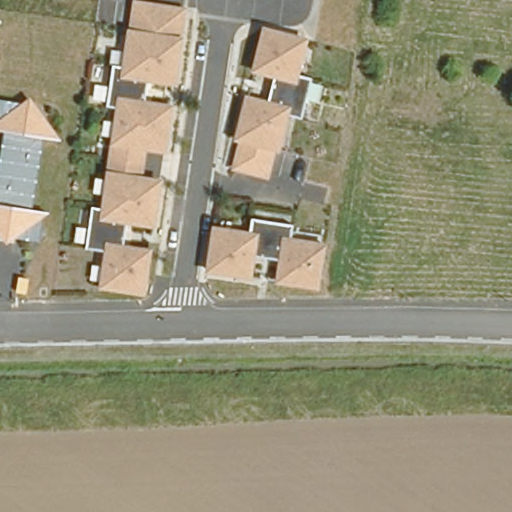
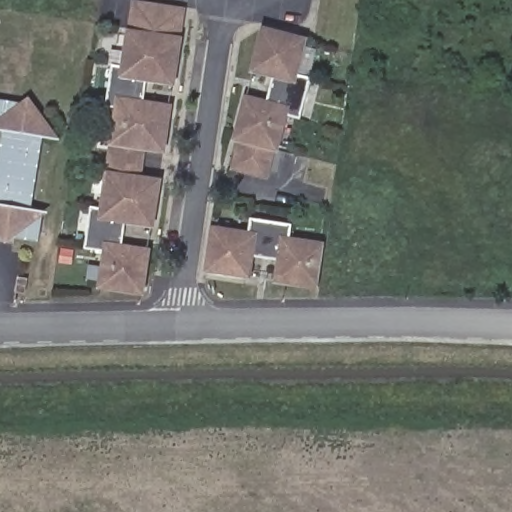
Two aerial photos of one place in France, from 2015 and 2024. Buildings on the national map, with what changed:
unchanged [(134,0),(137,0),(187,8),(180,37),(127,29),(134,0)]
unchanged [(302,120),(290,117),(280,154),(273,152),(269,180),(231,170),(246,96),(267,101),(273,78),(251,73),(262,25),(308,36),(300,75),(312,78),(302,120)]
unchanged [(149,223),(124,221),(120,247),(147,251),(140,292),(101,288),(104,249),(85,248),(90,206),(101,207),(106,173),(109,144),(113,109),(104,108),(110,63),(120,64),(127,29),(180,37),(172,86),(145,83),(142,101),(171,105),(162,153),(144,150),(140,178),(155,180),(149,223)]
unchanged [(44,139),(33,210),(52,213),(42,220),(40,242),(15,239),(5,246),(0,239),(0,158),(5,132),(0,131),(0,100),(21,103),(32,97),(61,141),(44,139)]
unchanged [(320,291),(275,285),(278,260),(258,257),(254,280),(206,275),(214,227),(251,232),(252,220),(293,225),(291,238),(327,242),(320,291)]

